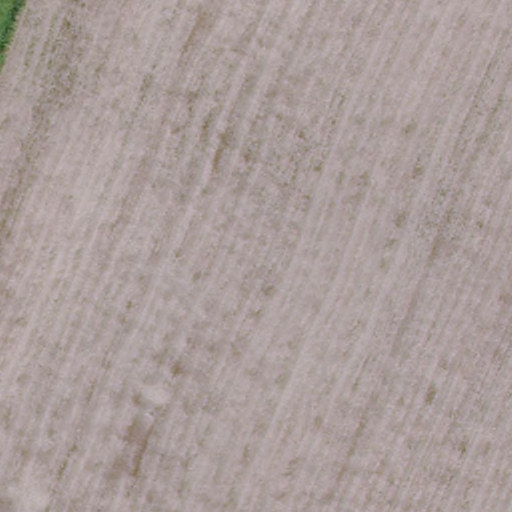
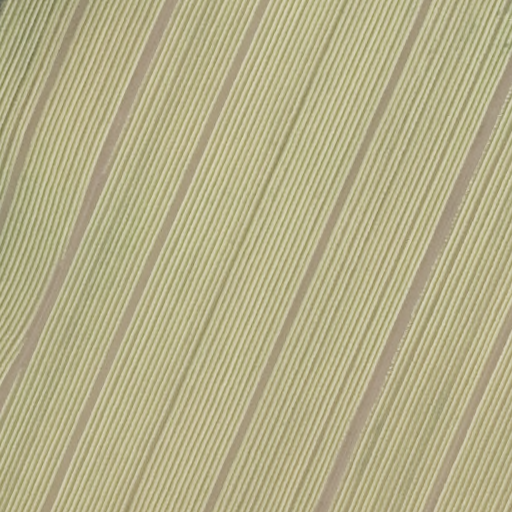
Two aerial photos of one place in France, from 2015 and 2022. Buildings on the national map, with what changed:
[]

